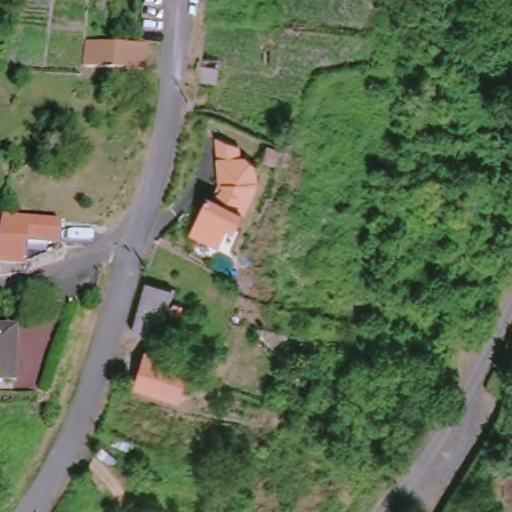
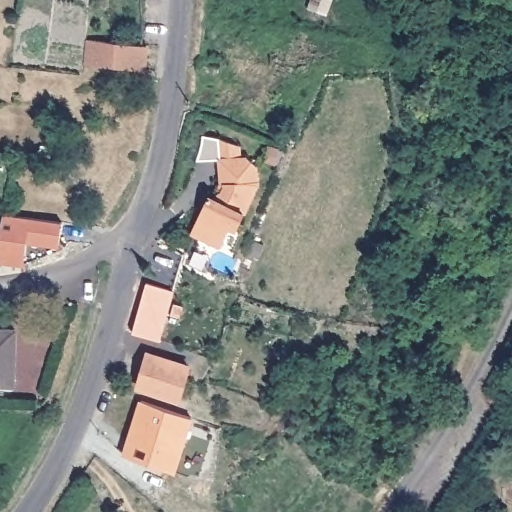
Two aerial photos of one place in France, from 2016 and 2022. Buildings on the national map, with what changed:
unchanged [(133,42),(141,44),(139,66),(78,61),(80,37),(133,42)]
unchanged [(211,197),(217,200),(226,195),(229,189),(229,186),(226,186),(223,161),(222,140),(243,147),(244,160),(252,159),(261,166),(261,185),(240,231),(233,228),(223,249),(194,235),(211,197)]
unchanged [(276,145),(271,160),(260,156),(265,141),(276,145)]
unchanged [(27,244),(25,266),(0,264),(0,237),(4,216),(64,222),(60,247),(27,244)]
unchanged [(129,329),(146,279),(169,287),(156,336),(129,329)]
unchanged [(8,379),(0,379),(0,325),(8,325),(8,379)]
unchanged [(179,361),(171,395),(132,386),(140,352),(179,361)]
new [(189,420),(174,476),(123,457),(139,402),(189,420)]

